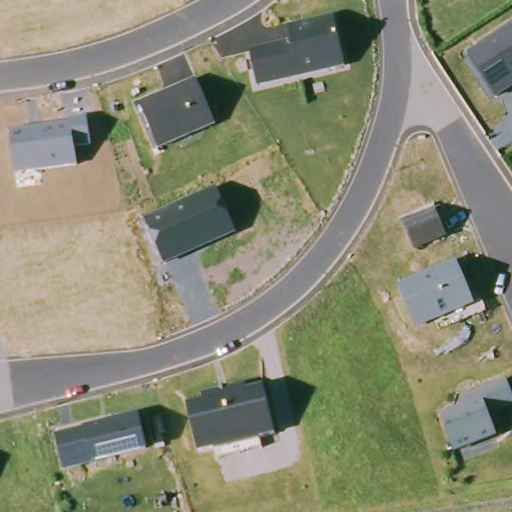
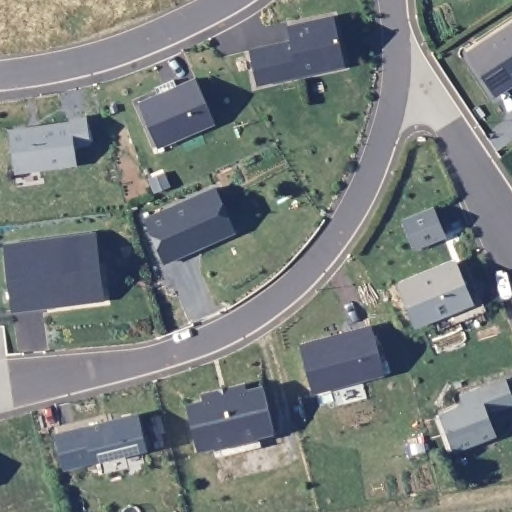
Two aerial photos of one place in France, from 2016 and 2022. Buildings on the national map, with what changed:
unchanged [(258,83),(250,48),(291,39),(288,24),(335,13),(346,62),(258,83)]
unchanged [(512,88),(496,98),(469,56),(512,28),(512,88)]
unchanged [(136,104),(195,79),(213,124),(156,149),(136,104)]
unchanged [(10,132),(70,124),(70,118),(89,117),(91,147),(76,151),(78,167),(15,175),(10,132)]
unchanged [(163,265),(145,220),(216,188),(235,235),(163,265)]
unchanged [(447,239),(412,250),(401,221),(434,208),(447,239)]
new [(60,306),(13,312),(5,248),(94,236),(101,288),(102,300),(60,306)]
unchanged [(402,289),(456,266),(473,306),(471,307),(420,329),(402,289)]
new [(301,348),(374,329),(386,376),(314,395),(301,348)]
unchanged [(512,403),(512,407),(496,414),(500,423),(490,427),(495,438),(454,454),(440,419),(465,410),(460,400),(505,384),(512,403)]
unchanged [(208,403),(206,396),(250,385),(252,392),(268,388),(280,433),(265,437),(263,432),(218,444),(220,448),(203,452),(192,407),(208,403)]
unchanged [(57,440),(138,421),(146,454),(65,473),(57,440)]

